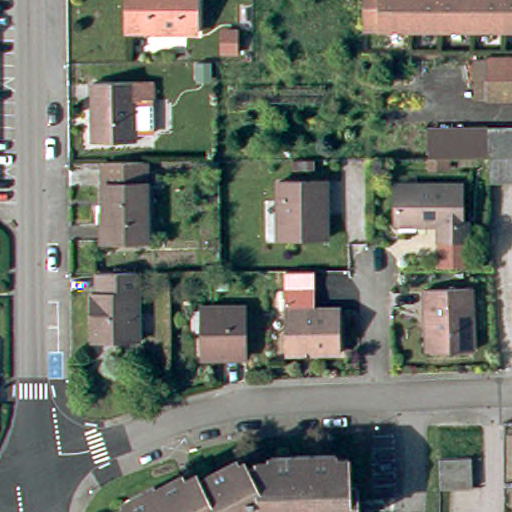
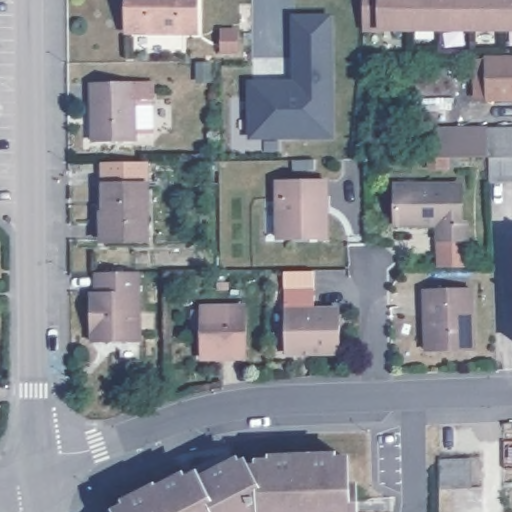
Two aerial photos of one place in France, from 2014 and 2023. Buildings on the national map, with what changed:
unchanged [(127,32),(127,0),(198,0),(198,31),(127,32)]
unchanged [(409,32),(364,32),(364,0),(440,0),(441,32),(409,32)]
unchanged [(472,32),(441,32),(440,0),(503,0),(504,31),(472,32)]
unchanged [(503,0),(512,0),(512,31),(504,31),(503,0)]
new [(332,15),(334,139),(248,140),(246,80),(291,79),(290,15),(332,15)]
unchanged [(472,102),(472,62),(512,61),(512,101),(472,102)]
unchanged [(144,81),(144,99),(142,99),(143,130),(140,134),(126,134),(126,141),(85,142),(84,82),(144,81)]
unchanged [(368,128),(422,127),(422,134),(422,159),(368,159),(368,128)]
unchanged [(512,133),(512,159),(484,159),(444,159),(422,159),(422,134),(512,133)]
unchanged [(92,205),(98,205),(97,156),(140,156),(142,240),(99,241),(99,221),(93,221),(92,205)]
unchanged [(485,176),(484,159),(512,159),(512,186),(485,186),(485,176)]
unchanged [(277,181),(325,180),(326,199),(323,199),(323,213),(326,213),(326,238),(287,239),(277,240),(277,199),(277,181)]
unchanged [(398,189),(463,189),(463,225),(469,225),(469,243),(443,243),(442,228),(427,228),(399,228),(399,222),(398,189)]
unchanged [(139,341),(92,341),(90,295),(98,295),(98,272),(107,272),(119,272),(138,271),(139,341)]
unchanged [(426,286),(471,285),(473,348),(440,349),(430,349),(428,310),(426,286)]
unchanged [(312,295),(312,314),(335,314),(337,355),(282,357),(280,295),(312,295)]
unchanged [(245,356),(201,357),(201,331),(200,307),(206,307),(244,307),(245,356)]
unchanged [(114,511),(125,506),(122,501),(152,487),(154,490),(182,476),(184,481),(196,476),(199,482),(236,463),(239,469),(244,466),(248,471),(259,470),(259,465),(272,465),(272,459),(336,456),(336,460),(348,459),(351,492),(357,492),(359,512),(114,512),(114,511)]
unchanged [(442,458),(472,457),(475,486),(442,488),(442,458)]

